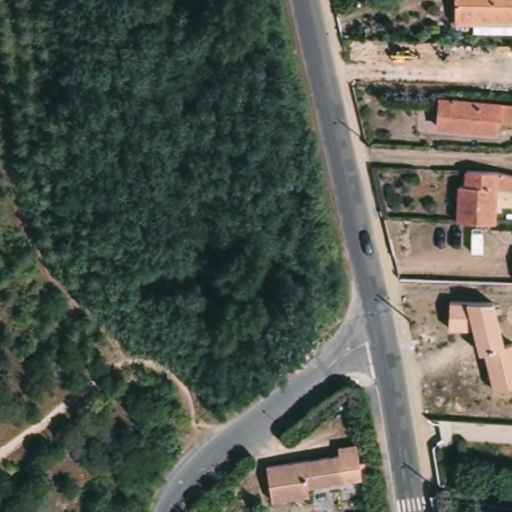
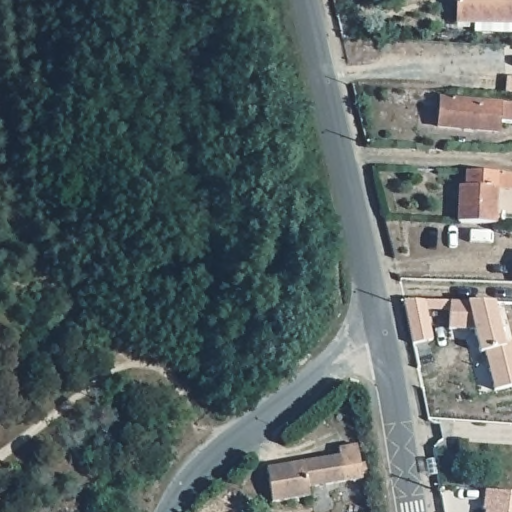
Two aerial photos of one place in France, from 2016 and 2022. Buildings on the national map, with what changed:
unchanged [(475,23),(460,23),(460,0),(512,0),(512,35),(475,34),(475,23)]
unchanged [(502,128),(442,121),(443,99),(512,105),(512,119),(502,118),(502,128)]
unchanged [(461,222),(462,184),(474,184),(475,170),(505,171),(501,224),(461,222)]
unchanged [(504,345),(512,344),(512,388),(495,392),(485,352),(478,354),(472,328),(448,328),(449,298),(495,300),(504,345)]
unchanged [(307,492),(271,498),(265,463),(337,451),(336,443),(354,440),(360,474),(306,483),(307,492)]
new [(485,508),(481,507),(483,490),(512,493),(512,512),(484,512),(485,508)]

